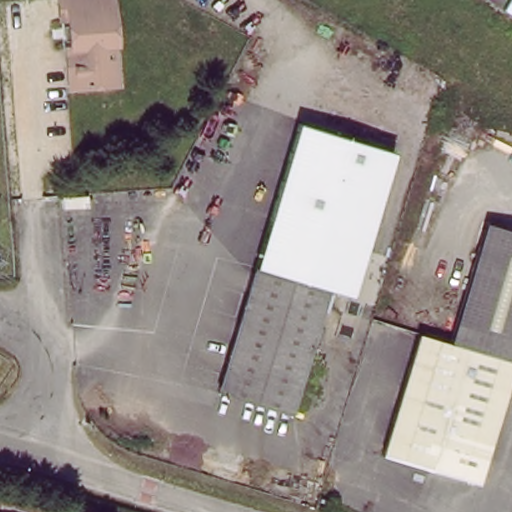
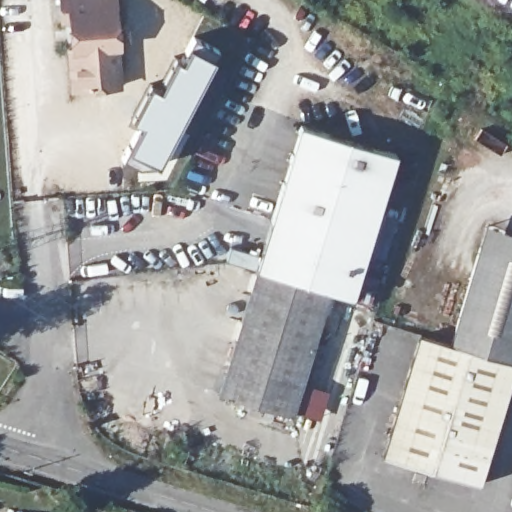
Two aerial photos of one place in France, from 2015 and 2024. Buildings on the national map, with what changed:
unchanged [(116,45),(119,85),(78,89),(75,49),(73,49),(69,19),(62,20),(60,0),(115,0),(118,45),(116,45)]
new [(139,123),(131,118),(149,81),(158,86),(175,55),(181,58),(189,43),(215,56),(156,165),(125,151),(139,123)]
unchanged [(299,124),(399,151),(355,295),(331,290),(258,270),(253,268),(299,124)]
unchanged [(485,225),(512,232),(512,255),(479,245),(485,225)]
unchanged [(512,255),(512,359),(449,341),(479,245),(512,255)]
unchanged [(328,290),(291,412),(221,391),(258,270),(328,290)]
unchanged [(512,362),(512,384),(481,483),(383,453),(419,335),(512,362)]

